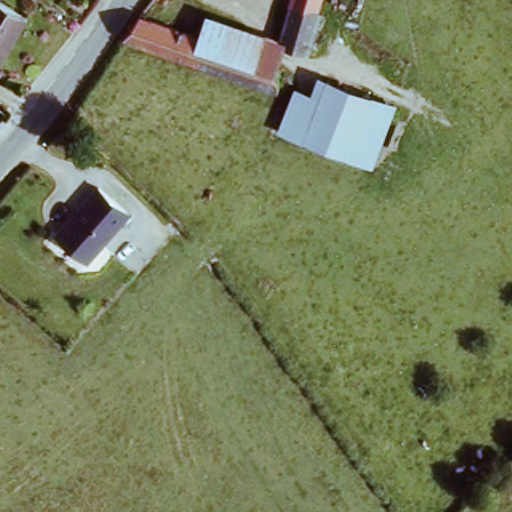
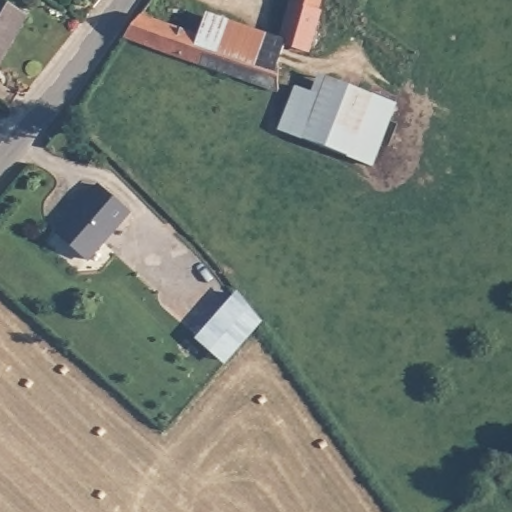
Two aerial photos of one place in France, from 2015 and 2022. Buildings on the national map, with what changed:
unchanged [(0,66),(0,0),(2,0),(32,20),(0,66)]
unchanged [(279,39),(276,38),(279,26),(288,0),(319,0),(304,47),(284,41),(279,39)]
unchanged [(198,26),(205,12),(276,38),(279,39),(264,86),(121,40),(144,11),(198,26)]
unchanged [(278,128),(296,86),(311,91),(318,75),(394,104),(372,163),(278,128)]
unchanged [(99,183),(129,209),(87,256),(57,229),(99,183)]
new [(238,292),(264,323),(226,366),(195,340),(238,292)]

